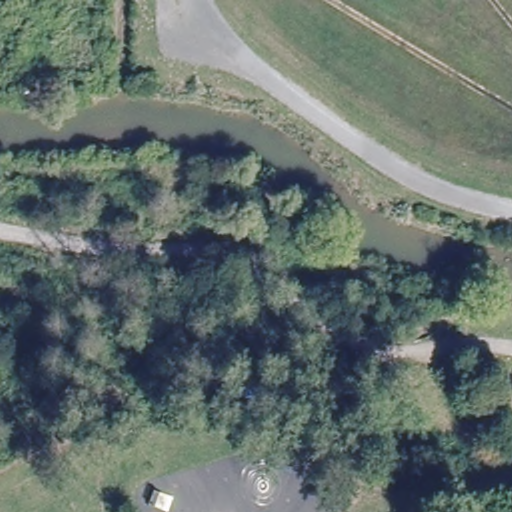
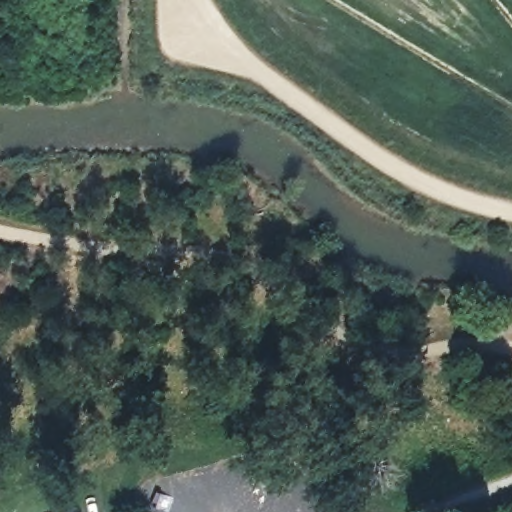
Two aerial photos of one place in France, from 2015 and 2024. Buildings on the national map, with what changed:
[]

